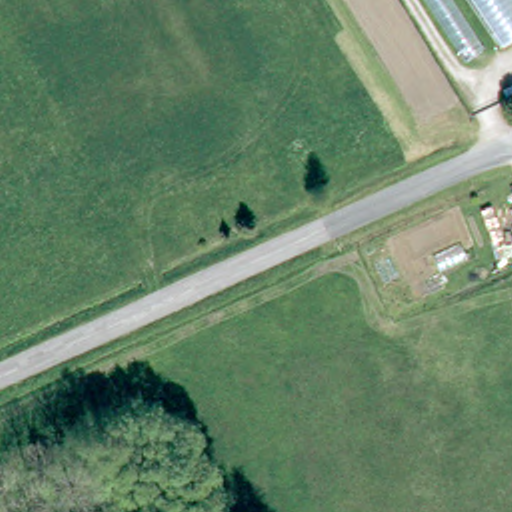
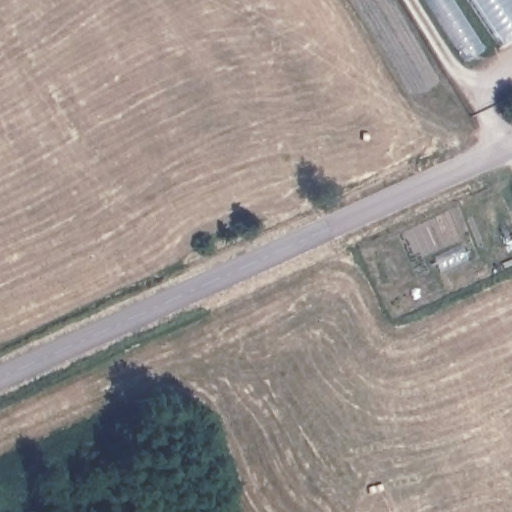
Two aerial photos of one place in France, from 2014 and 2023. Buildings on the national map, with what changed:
unchanged [(421,0),(512,0),(512,32),(462,64),(421,0)]

